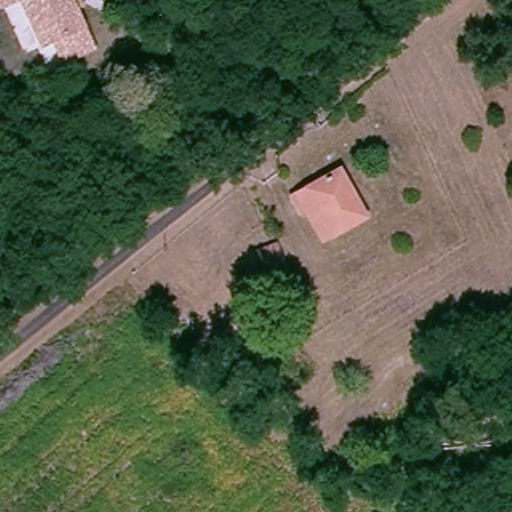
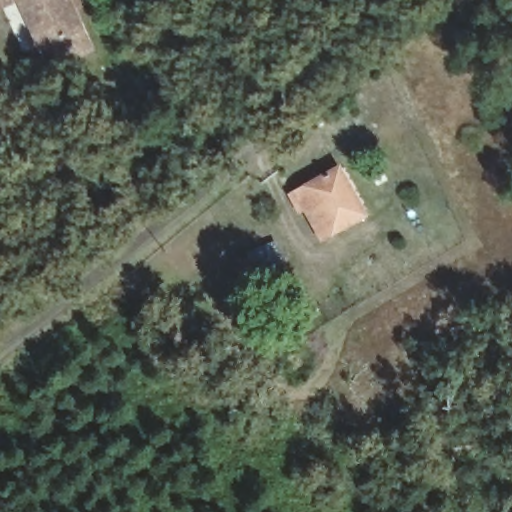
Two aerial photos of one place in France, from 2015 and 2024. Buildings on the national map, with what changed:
unchanged [(17,0),(0,11),(0,0),(17,0)]
unchanged [(97,51),(63,66),(52,42),(41,49),(17,0),(75,0),(87,26),(97,51)]
unchanged [(301,210),(293,214),(286,197),(334,171),(359,214),(318,236),(301,210)]
unchanged [(242,287),(239,280),(262,268),(273,290),(239,309),(231,293),(242,287)]

